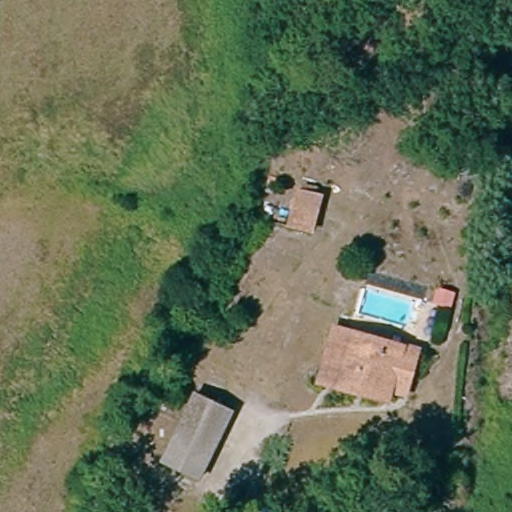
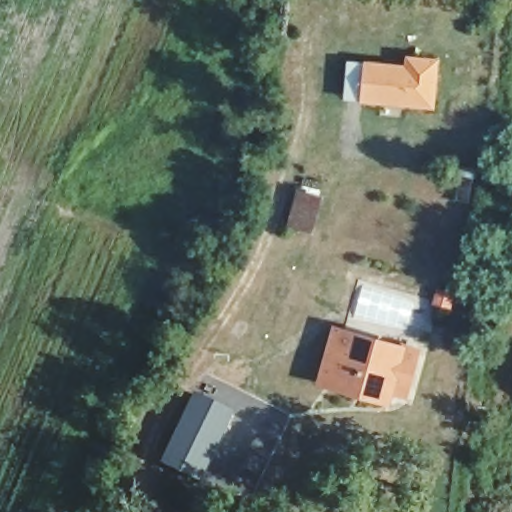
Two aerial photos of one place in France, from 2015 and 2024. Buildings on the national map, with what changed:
new [(404,54),(439,58),(434,111),(358,103),(342,100),(345,59),(362,60),(402,63),(404,54)]
unchanged [(283,228),(293,186),(323,193),(313,234),(283,228)]
unchanged [(384,390),(384,400),(319,388),(330,326),(411,343),(408,365),(404,392),(384,390)]
unchanged [(224,416),(200,486),(166,474),(190,401),(224,416)]

